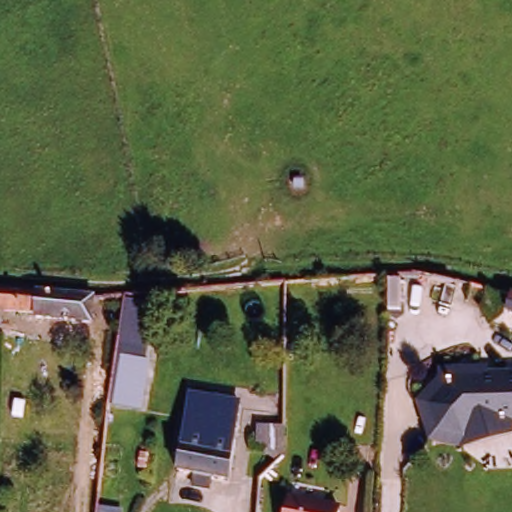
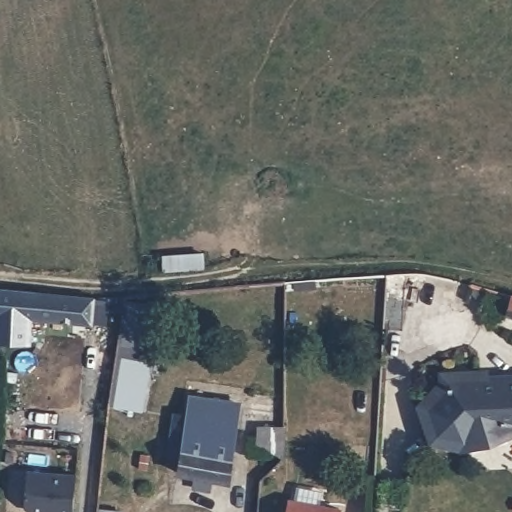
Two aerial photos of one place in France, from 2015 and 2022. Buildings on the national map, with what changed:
unchanged [(97,288),(96,322),(39,323),(38,312),(0,312),(0,293),(97,288)]
unchanged [(160,303),(150,361),(155,361),(145,410),(115,405),(121,355),(116,354),(124,300),(160,303)]
unchanged [(512,301),(512,317),(508,315),(512,301)]
unchanged [(440,370),(490,368),(490,374),(512,374),(512,437),(461,451),(428,443),(418,405),(440,380),(440,370)]
unchanged [(240,398),(231,482),(176,472),(185,392),(240,398)]
unchanged [(255,455),(256,425),(288,425),(285,456),(255,455)]
new [(29,472),(77,476),(74,512),(30,512),(26,507),(29,472)]
unchanged [(288,503),(337,511),(337,512),(287,512),(288,503)]
unchanged [(98,506),(125,510),(125,512),(97,512),(98,506)]

